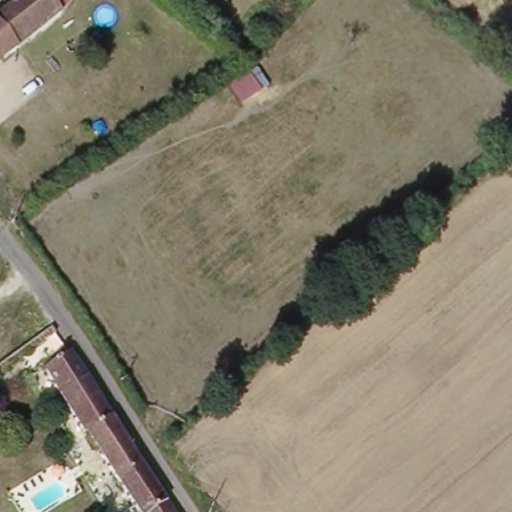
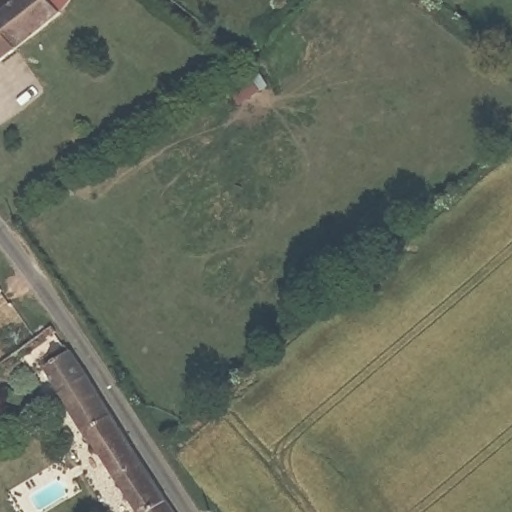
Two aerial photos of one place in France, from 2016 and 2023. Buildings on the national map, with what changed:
unchanged [(53,5),(52,14),(0,65),(0,12),(13,0),(57,0),(53,5)]
unchanged [(43,365),(66,347),(111,415),(156,482),(176,512),(144,512),(103,452),(43,365)]

